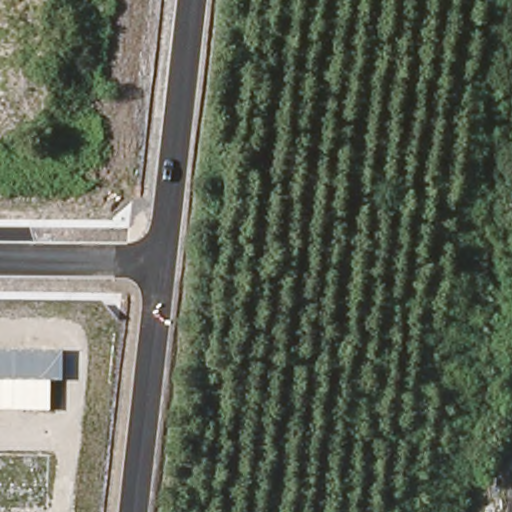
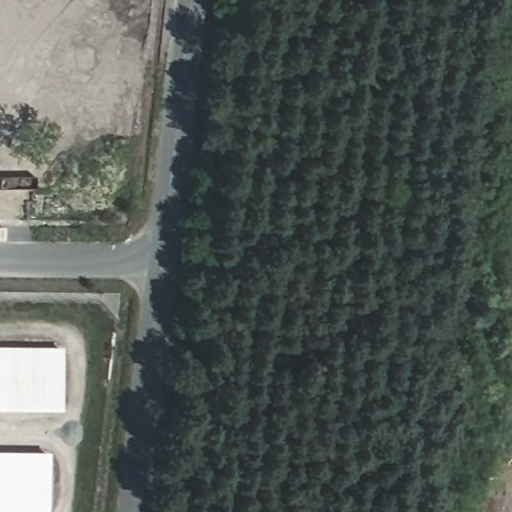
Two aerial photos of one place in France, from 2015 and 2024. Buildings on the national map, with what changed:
unchanged [(56,410),(0,409),(0,351),(59,352),(56,410)]
new [(44,512),(0,512),(0,453),(44,453),(44,512)]

